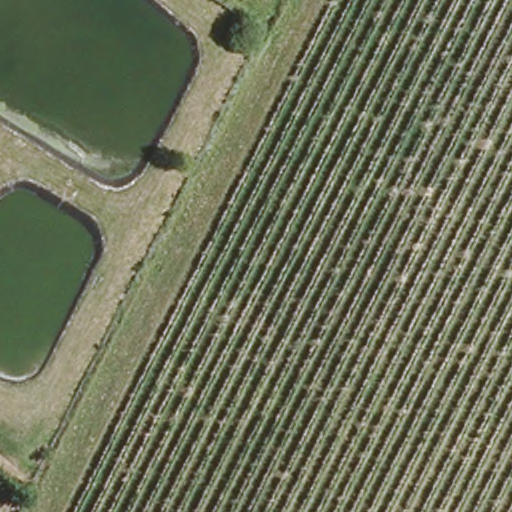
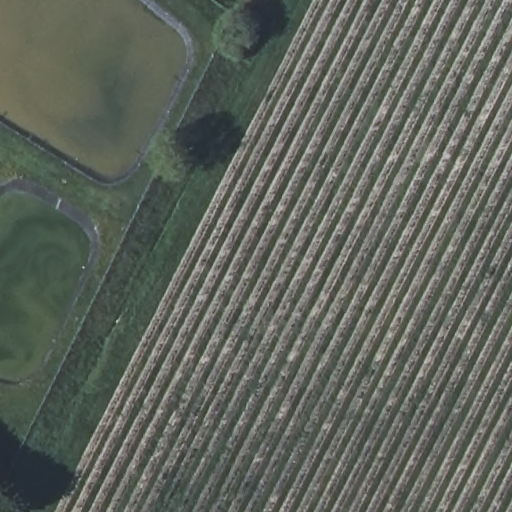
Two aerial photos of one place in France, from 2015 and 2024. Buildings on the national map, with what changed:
[]

